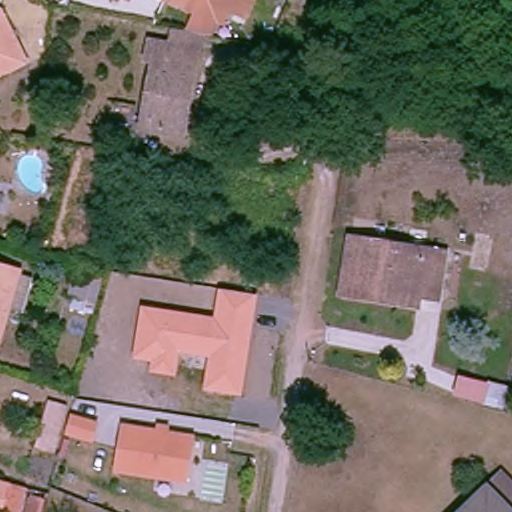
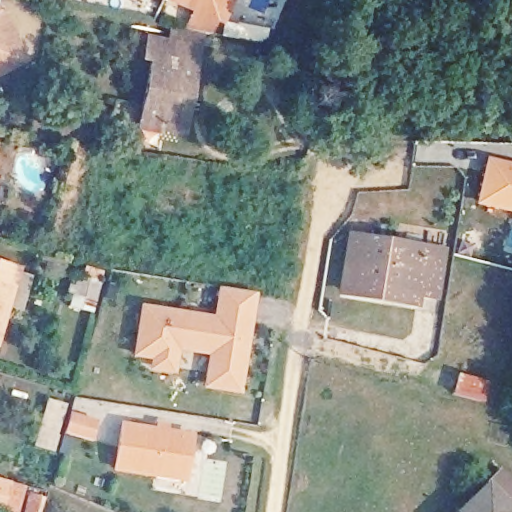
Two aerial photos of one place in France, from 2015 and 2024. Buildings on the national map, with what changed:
unchanged [(0,62),(0,0),(1,0),(26,50),(0,62)]
unchanged [(250,16),(232,9),(226,23),(220,20),(213,35),(194,31),(190,30),(199,10),(175,0),(257,0),(250,16)]
unchanged [(189,135),(150,127),(160,65),(150,64),(153,43),(197,51),(204,52),(200,70),(197,89),(192,117),(189,135)]
new [(485,156),(512,163),(512,212),(475,204),(485,156)]
unchanged [(373,296),(348,291),(358,237),(446,253),(437,299),(423,297),(422,306),(373,296)]
unchanged [(92,315),(64,309),(78,268),(103,272),(92,315)]
unchanged [(0,333),(0,269),(17,274),(0,333)]
unchanged [(259,294),(242,394),(205,389),(209,355),(178,352),(177,378),(149,373),(149,360),(134,357),(142,305),(213,317),(219,287),(259,294)]
unchanged [(446,397),(455,369),(510,383),(501,411),(446,397)]
unchanged [(67,420),(68,415),(95,421),(91,439),(64,432),(67,420)]
unchanged [(125,425),(142,428),(194,435),(188,478),(133,471),(119,469),(125,425)]
unchanged [(512,479),(512,512),(448,512),(499,466),(512,479)]
unchanged [(13,512),(11,512),(0,509),(0,478),(21,485),(13,512)]
unchanged [(37,512),(19,512),(24,490),(41,495),(37,512)]

